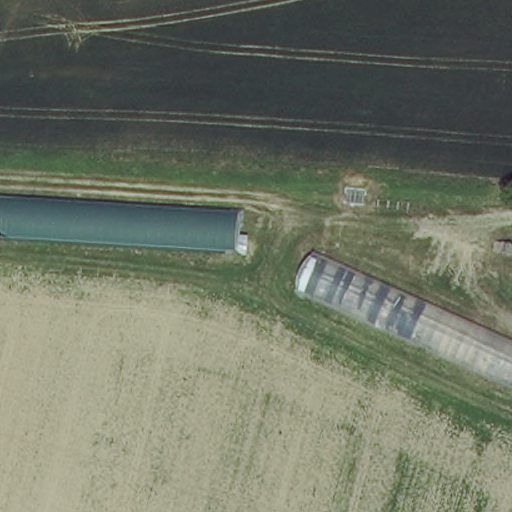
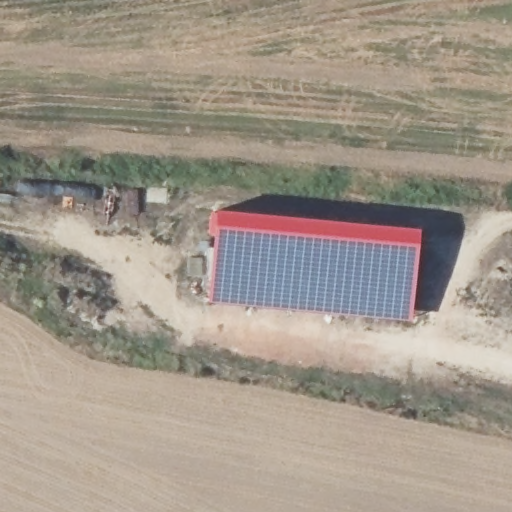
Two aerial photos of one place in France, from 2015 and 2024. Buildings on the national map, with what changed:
demolished [(374,121),(372,163),(116,149),(118,106),(374,121)]
demolished [(0,240),(0,191),(240,198),(244,247),(0,240)]
new [(215,209),(420,228),(411,320),(207,301),(215,209)]
demolished [(512,388),(296,290),(313,250),(512,344),(512,388)]

